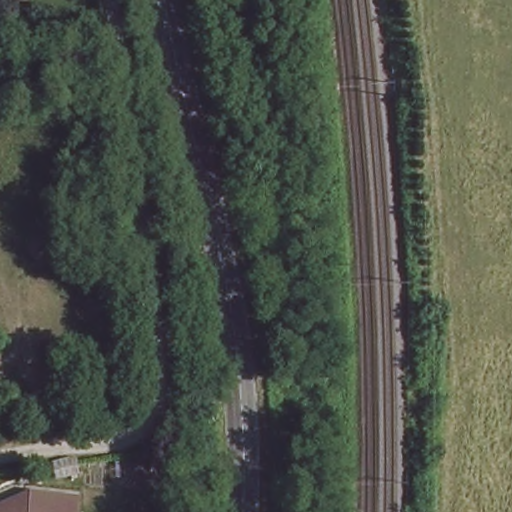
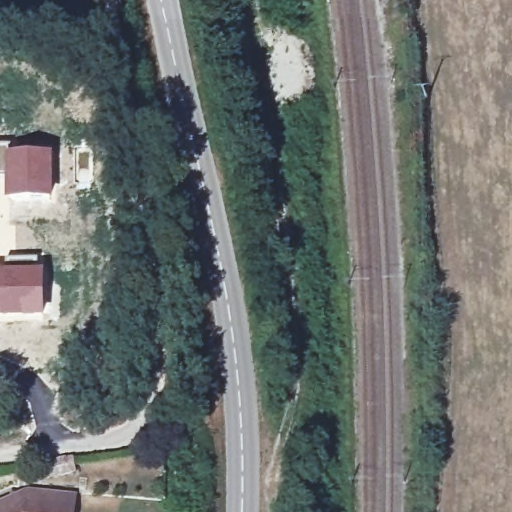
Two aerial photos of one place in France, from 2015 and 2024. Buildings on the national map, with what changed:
new [(10,144),(10,154),(54,153),(54,200),(5,200),(6,176),(0,176),(0,144),(10,144)]
new [(6,271),(6,257),(41,256),(41,270),(45,270),(46,318),(0,319),(0,271),(6,271)]
unchanged [(76,512),(0,512),(0,497),(25,486),(79,495),(76,512)]

